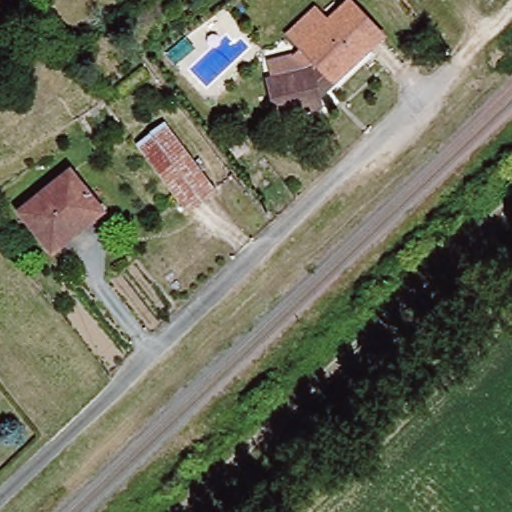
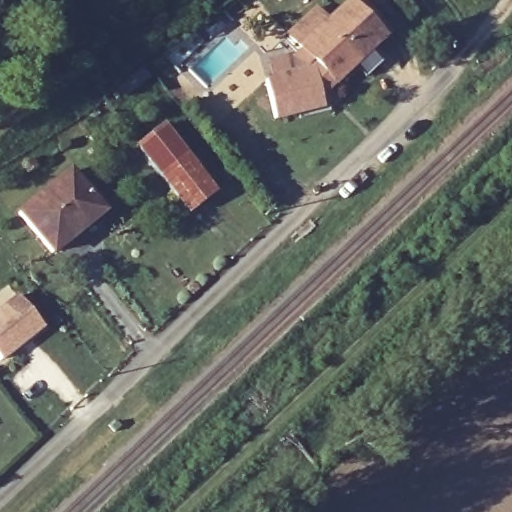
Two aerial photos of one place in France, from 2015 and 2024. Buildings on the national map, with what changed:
unchanged [(320,101),(321,112),(277,122),(269,85),(306,77),(318,66),(301,49),(289,34),(316,9),(330,23),(349,4),(383,40),(338,85),(324,98),(320,101)]
unchanged [(213,189),(186,207),(139,143),(166,124),(213,189)]
unchanged [(99,208),(53,246),(22,209),(68,170),(99,208)]
new [(19,294),(43,325),(0,358),(0,357),(0,309),(19,294)]

